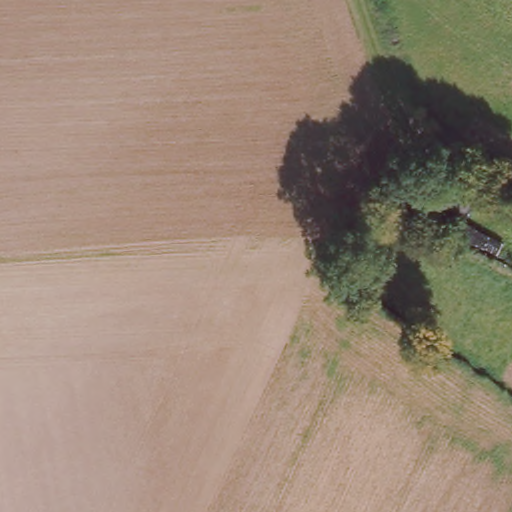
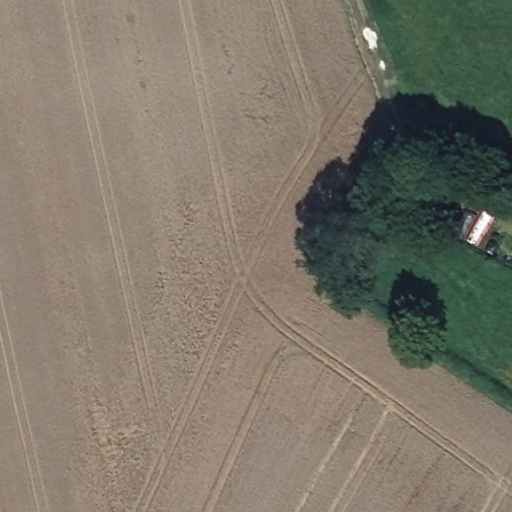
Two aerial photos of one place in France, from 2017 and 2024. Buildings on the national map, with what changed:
[]

